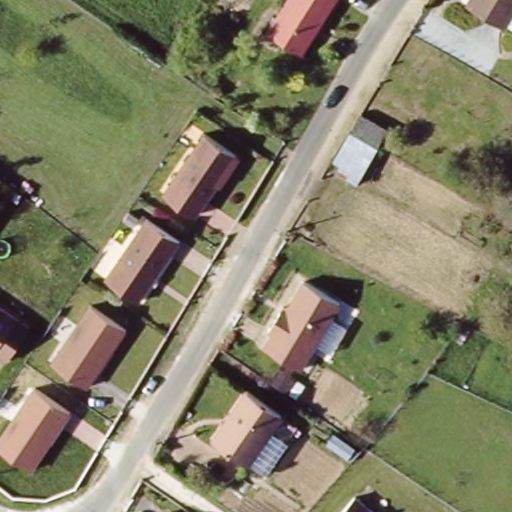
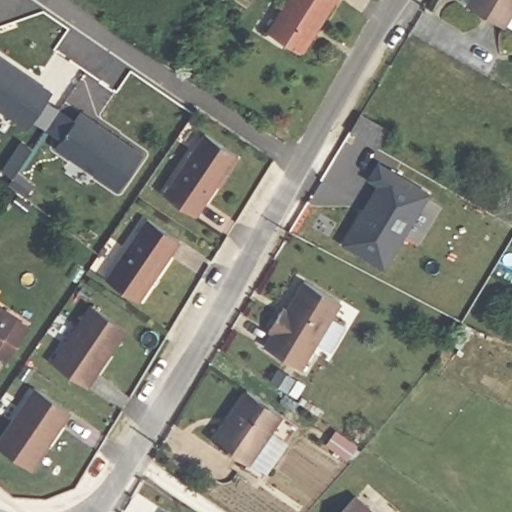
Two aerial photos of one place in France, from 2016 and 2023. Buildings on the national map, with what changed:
unchanged [(275,28),(292,0),(338,0),(307,49),(275,28)]
unchanged [(479,0),(512,0),(512,19),(479,0)]
new [(29,129),(0,109),(0,56),(55,95),(51,101),(62,109),(48,129),(34,120),(29,129)]
demolished [(361,110),(390,126),(357,183),(336,170),(340,163),(333,159),(361,110)]
new [(120,190),(57,150),(83,111),(145,153),(120,190)]
unchanged [(156,189),(200,128),(240,158),(195,217),(156,189)]
new [(387,271),(343,244),(378,186),(368,180),(379,161),(433,193),(387,271)]
unchanged [(182,238),(140,299),(105,275),(146,214),(182,238)]
unchanged [(258,346),(298,278),(338,302),(298,368),(258,346)]
unchanged [(15,356),(1,348),(0,349),(0,299),(37,322),(15,356)]
unchanged [(123,329),(87,386),(51,362),(87,305),(123,329)]
unchanged [(300,419),(266,468),(215,434),(249,385),(300,419)]
unchanged [(32,468),(0,448),(0,434),(32,386),(70,411),(32,468)]
unchanged [(352,492),(373,512),(334,512),(352,492)]
unchanged [(177,512),(168,512),(171,508),(177,512)]

